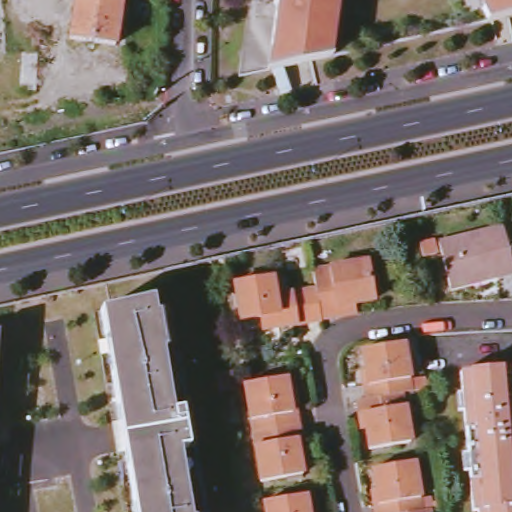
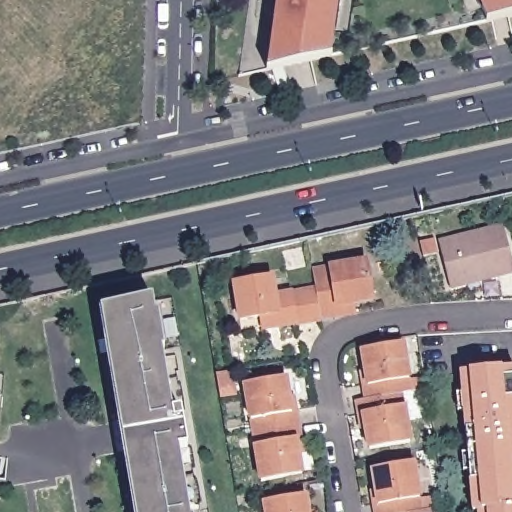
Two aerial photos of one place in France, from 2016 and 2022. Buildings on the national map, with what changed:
demolished [(75,0),(121,0),(120,3),(114,47),(92,44),(68,40),(75,0)]
unchanged [(338,36),(334,61),(279,74),(281,52),(275,52),(282,0),(336,0),(332,35),(338,36)]
unchanged [(339,0),(343,0),(343,1),(339,0)]
unchanged [(492,25),(485,12),(491,9),(486,0),(512,0),(512,20),(492,25)]
unchanged [(507,231),(512,254),(512,278),(451,292),(439,246),(507,231)]
unchanged [(426,258),(423,244),(434,242),(438,256),(426,258)]
unchanged [(314,286),(312,270),(368,260),(374,296),(337,302),(339,312),(316,317),(311,286),(314,286)]
unchanged [(299,325),(299,322),(279,326),(276,312),(241,318),(234,283),(274,276),(277,292),(311,286),(316,317),(318,321),(299,325)]
unchanged [(153,302),(156,318),(159,317),(165,354),(157,355),(167,416),(181,413),(188,451),(173,453),(183,512),(142,512),(141,504),(133,505),(111,374),(119,373),(113,337),(105,338),(101,311),(153,302)]
unchanged [(0,351),(0,333),(2,332),(0,351)]
unchanged [(366,400),(364,388),(368,388),(361,352),(403,346),(411,392),(400,395),(366,400)]
unchanged [(512,368),(512,512),(472,512),(460,372),(512,368)]
unchanged [(216,374),(227,372),(230,372),(233,389),(219,391),(216,374)]
unchanged [(254,433),(246,383),(285,377),(291,413),(296,412),(299,425),(254,433)]
unchanged [(409,439),(367,446),(361,413),(356,415),(354,402),(366,400),(400,395),(409,439)]
unchanged [(301,438),(296,439),(301,475),(262,482),(254,433),(299,425),(301,438)]
unchanged [(373,507),(378,506),(374,482),(415,475),(422,512),(373,512),(373,507)]
unchanged [(265,502),(306,495),(308,512),(267,512),(265,502)]
unchanged [(430,512),(422,512),(429,511),(430,512)]

